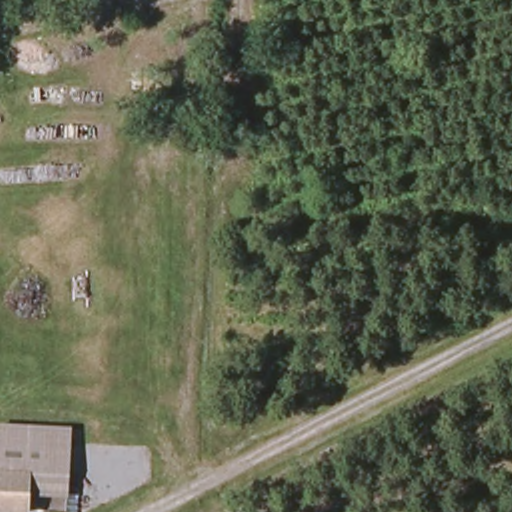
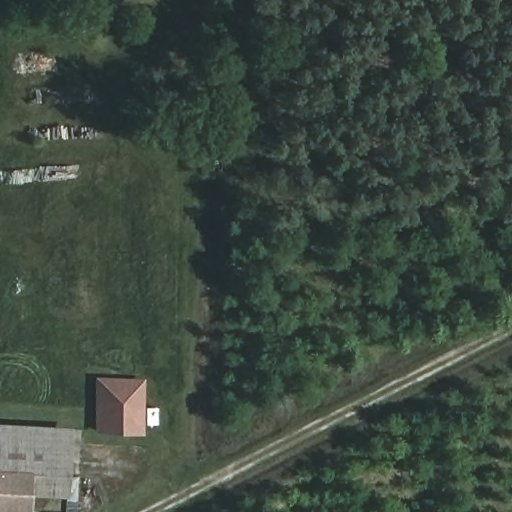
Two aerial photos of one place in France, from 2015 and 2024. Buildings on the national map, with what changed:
new [(145,378),(144,435),(95,433),(94,376),(145,378)]
unchanged [(32,470),(0,469),(0,422),(71,428),(69,497),(32,496),(32,485),(32,470)]
unchanged [(32,485),(32,496),(31,512),(0,512),(0,469),(32,470),(32,485)]

